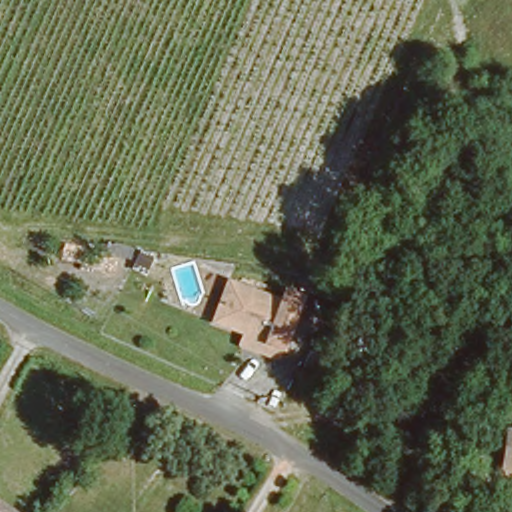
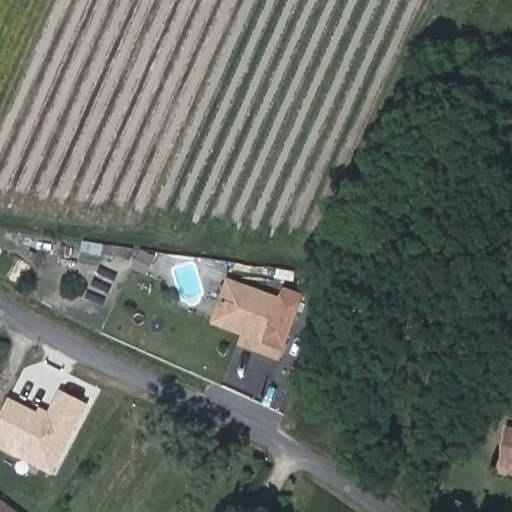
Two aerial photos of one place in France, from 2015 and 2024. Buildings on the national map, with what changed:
unchanged [(219,326),(232,287),(304,310),(295,338),(293,347),(239,331),(219,326)]
new [(53,476),(0,449),(0,416),(9,398),(37,412),(39,407),(49,412),(59,389),(89,405),(53,476)]
unchanged [(502,471),(507,430),(512,431),(512,473),(502,471)]
unchanged [(0,512),(0,500),(17,512),(0,512)]

